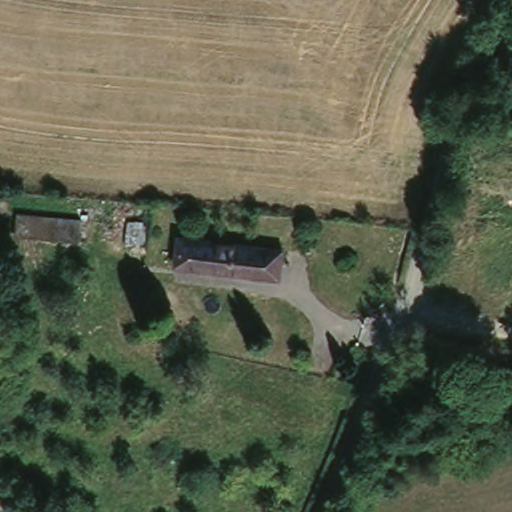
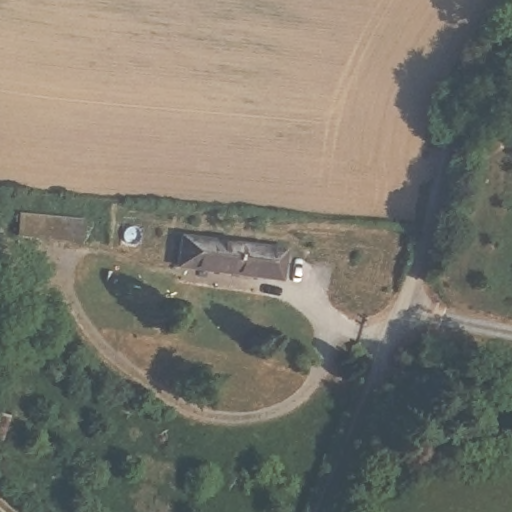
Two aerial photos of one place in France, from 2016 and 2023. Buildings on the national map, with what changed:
unchanged [(80,219),(78,243),(15,234),(17,213),(80,219)]
unchanged [(280,278),(260,275),(178,263),(183,237),(264,247),(285,249),(280,278)]

